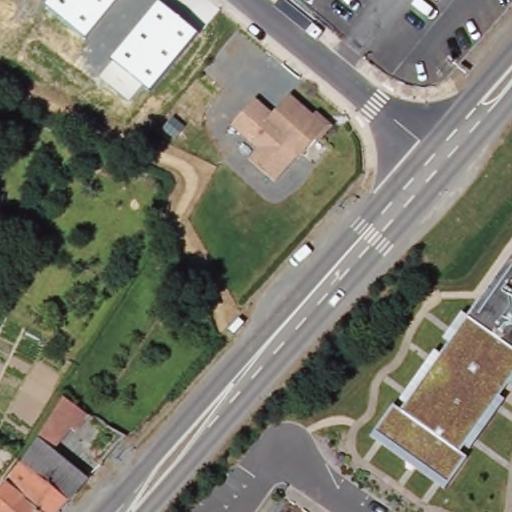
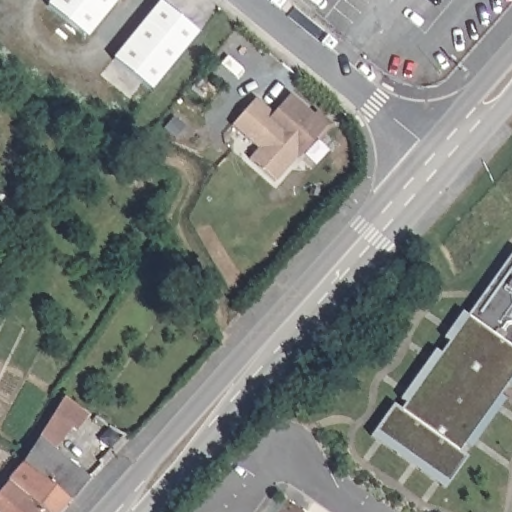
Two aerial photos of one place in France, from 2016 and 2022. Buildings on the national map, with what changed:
unchanged [(119,0),(86,40),(46,7),(51,0),(119,0)]
unchanged [(159,2),(198,35),(151,92),(113,61),(159,2)]
unchanged [(250,152),(259,142),(235,122),(258,95),(271,107),(290,85),(328,117),(277,174),(250,152)]
unchanged [(500,396),(505,398),(469,449),(466,446),(461,452),(467,457),(445,487),(371,437),(394,406),(401,410),(406,403),(399,398),(435,351),(440,355),(448,342),(443,339),(462,313),(466,317),(512,254),(512,387),(508,384),(500,396)]
unchanged [(69,501),(23,462),(64,397),(73,402),(89,414),(74,432),(71,429),(53,449),(89,478),(69,501)]
unchanged [(59,512),(0,512),(0,490),(23,462),(69,501),(59,512)]

